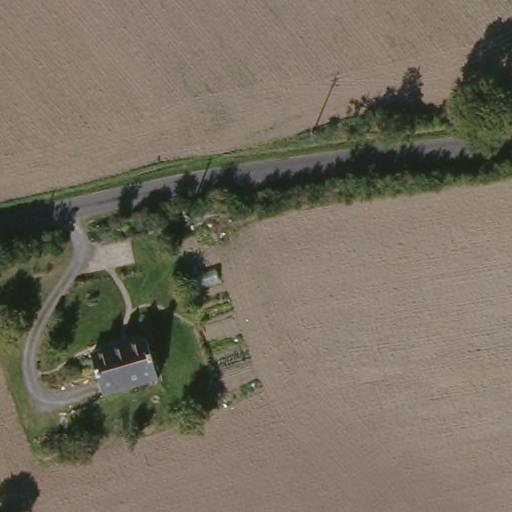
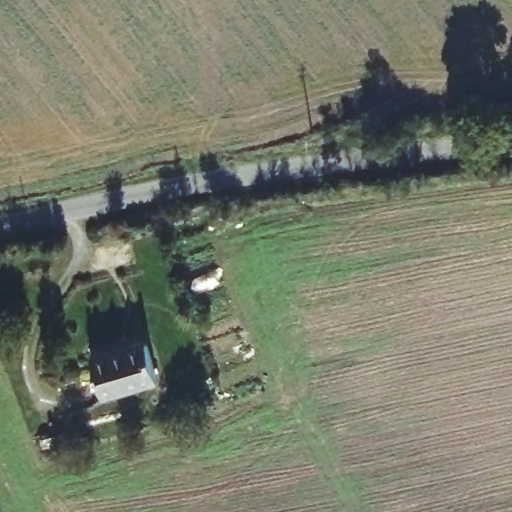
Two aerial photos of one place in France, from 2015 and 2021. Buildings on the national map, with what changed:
unchanged [(157,387),(99,397),(92,358),(149,347),(157,387)]

